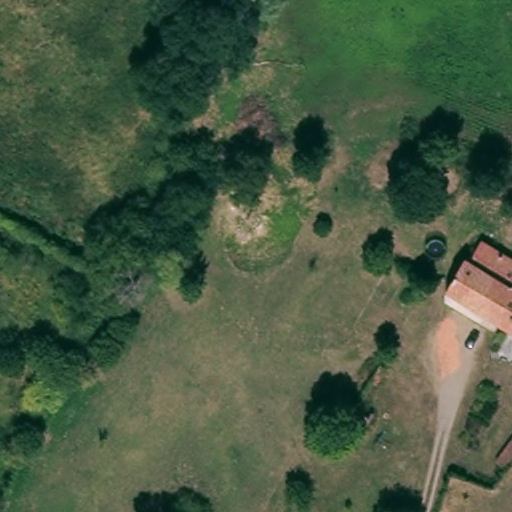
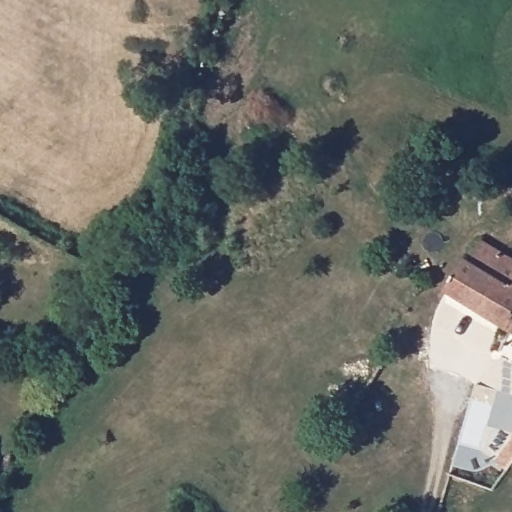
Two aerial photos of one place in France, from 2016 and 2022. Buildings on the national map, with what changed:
unchanged [(459,248),(465,250),(476,229),(507,249),(506,251),(476,305),(442,285),(459,248)]
unchanged [(506,251),(507,249),(512,252),(512,326),(476,305),(506,251)]

